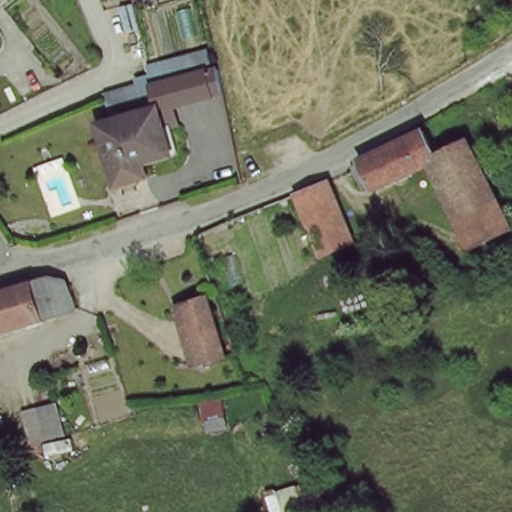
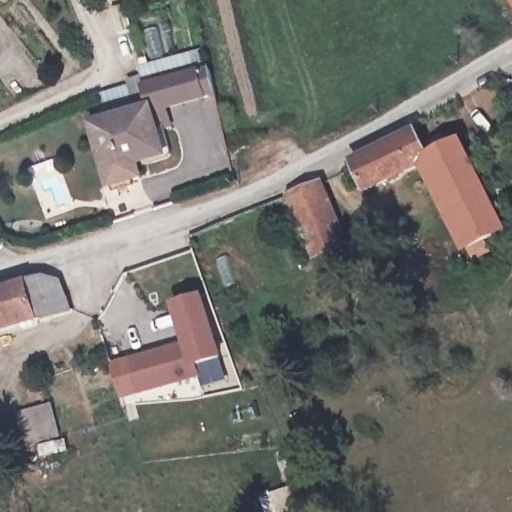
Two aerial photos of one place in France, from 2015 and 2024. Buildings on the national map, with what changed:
unchanged [(160,111),(173,158),(157,164),(142,118),(130,121),(123,101),(102,108),(99,96),(144,84),(138,69),(193,51),(200,70),(208,68),(216,94),(160,111)]
unchanged [(127,194),(117,197),(105,200),(83,136),(103,128),(97,109),(102,108),(123,101),(130,121),(142,118),(157,164),(139,170),(132,172),(137,190),(127,194)]
unchanged [(420,173),(358,195),(356,189),(341,193),(332,174),(411,128),(427,154),(459,144),(489,208),(446,228),(420,173)]
unchanged [(309,263),(288,204),(320,187),(343,251),(309,263)]
unchanged [(0,328),(0,286),(59,281),(65,305),(0,328)]
unchanged [(177,307),(200,301),(218,359),(192,366),(177,307)]
new [(186,343),(192,366),(196,365),(200,378),(137,395),(128,359),(186,343)]
unchanged [(20,413),(49,408),(53,431),(56,443),(27,449),(24,436),(20,413)]
unchanged [(293,492),(301,512),(264,512),(261,501),(293,492)]

